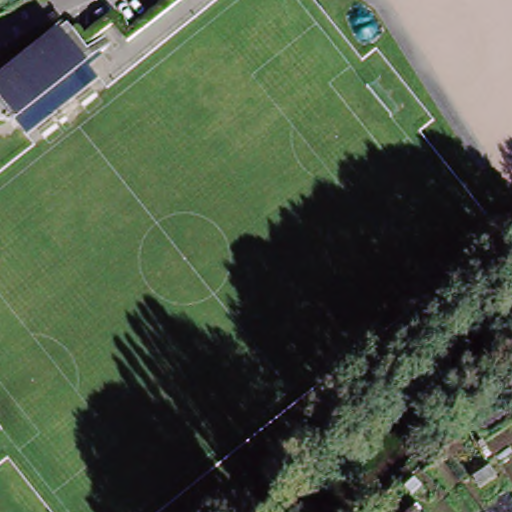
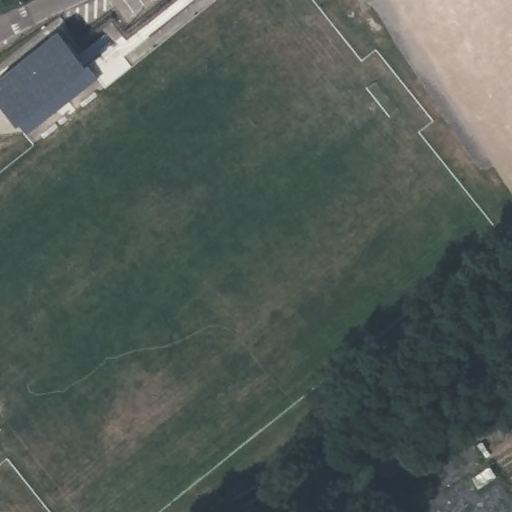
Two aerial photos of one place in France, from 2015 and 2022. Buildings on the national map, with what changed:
unchanged [(8,124),(0,114),(0,80),(55,36),(79,66),(8,124)]
unchanged [(98,42),(104,50),(84,65),(78,58),(98,42)]
unchanged [(92,83),(21,139),(8,124),(79,66),(92,83)]

